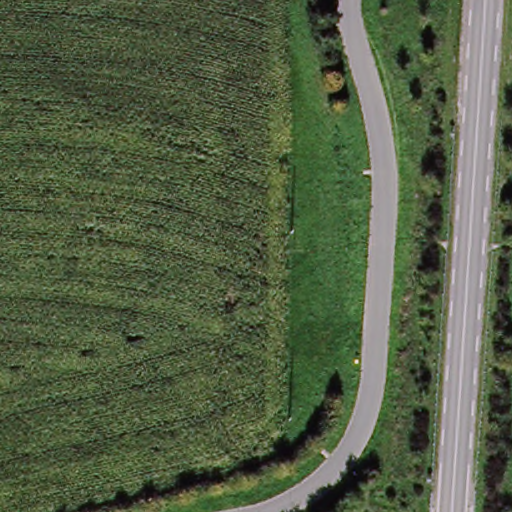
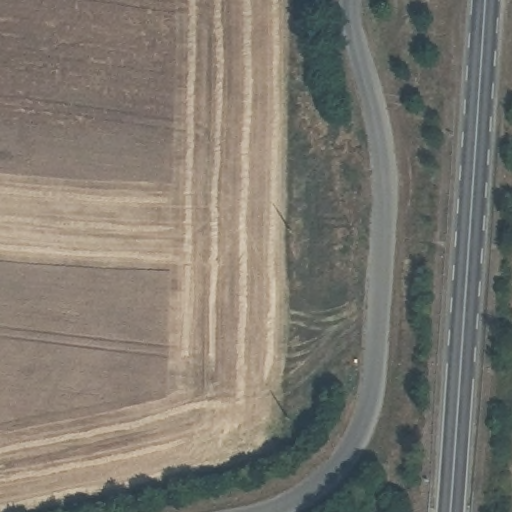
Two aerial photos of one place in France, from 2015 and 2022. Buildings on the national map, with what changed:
[]

